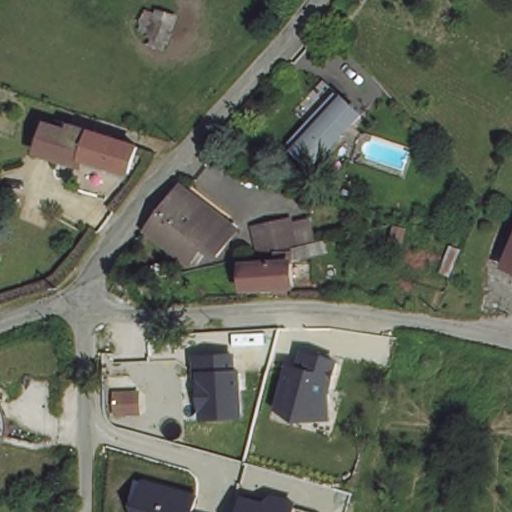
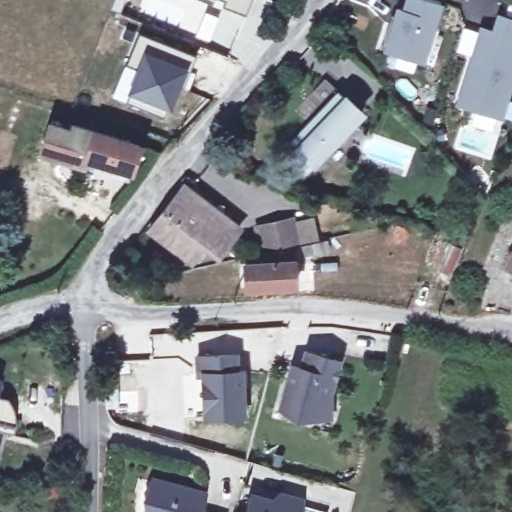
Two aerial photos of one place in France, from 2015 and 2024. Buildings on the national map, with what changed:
new [(223,7),(225,1),(223,0),(252,0),(247,16),(223,7)]
new [(397,27),(402,12),(407,14),(412,0),(428,0),(444,5),(426,62),(385,50),(392,26),(397,27)]
demolished [(169,38),(145,34),(150,1),(177,7),(169,38)]
new [(500,17),(512,20),(512,84),(502,117),(460,105),(483,30),(495,33),(500,17)]
new [(196,56),(182,89),(177,87),(169,105),(164,117),(125,102),(130,90),(139,71),(125,66),(139,32),(196,56)]
unchanged [(362,117),(317,169),(292,147),(338,95),(362,117)]
unchanged [(67,130),(69,126),(141,146),(136,172),(91,159),(89,168),(42,155),(50,124),(67,130)]
unchanged [(219,263),(207,254),(198,267),(147,234),(175,197),(182,189),(230,222),(242,231),(219,263)]
unchanged [(314,259),(290,263),(290,290),(242,291),(241,267),(272,265),(272,254),(260,256),(260,255),(256,230),(292,224),(297,247),(297,249),(312,245),(314,259)]
unchanged [(512,253),(512,270),(506,267),(512,253)]
unchanged [(341,360),(334,394),(334,417),(302,423),(280,411),(290,363),(300,363),(305,347),(341,360)]
unchanged [(237,353),(237,367),(243,367),(248,416),(205,420),(206,410),(202,410),(200,376),(195,356),(237,353)]
unchanged [(139,411),(114,412),(113,385),(137,382),(139,411)]
unchanged [(2,401),(10,417),(10,428),(10,436),(0,435),(0,437),(0,401),(2,401)]
unchanged [(205,494),(198,512),(140,512),(137,502),(150,479),(205,494)]
unchanged [(268,500),(275,495),(302,502),(299,512),(243,512),(249,493),(268,500)]

